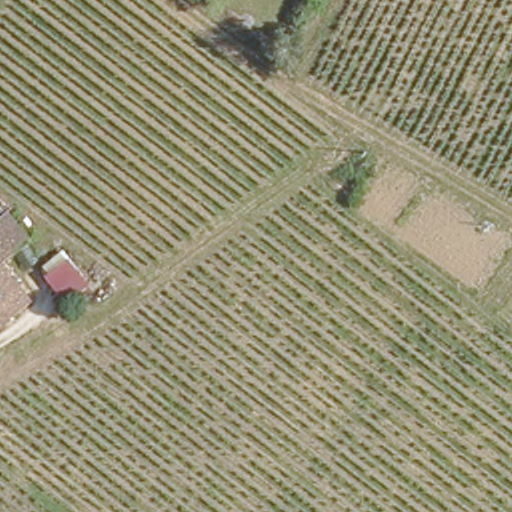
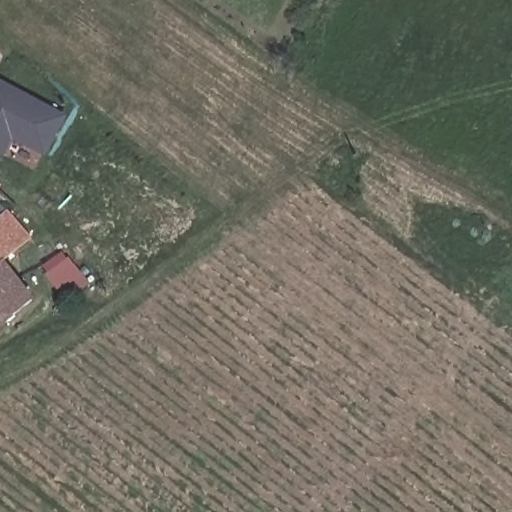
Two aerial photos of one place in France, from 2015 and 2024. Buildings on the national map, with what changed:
new [(11,134),(0,142),(0,81),(63,115),(44,152),(11,134)]
unchanged [(8,210),(11,212),(36,235),(8,257),(11,261),(0,269),(0,214),(1,215),(8,210)]
unchanged [(70,289),(62,281),(70,274),(55,257),(63,248),(66,250),(89,273),(70,289)]
unchanged [(0,324),(0,269),(11,261),(37,295),(0,324)]

